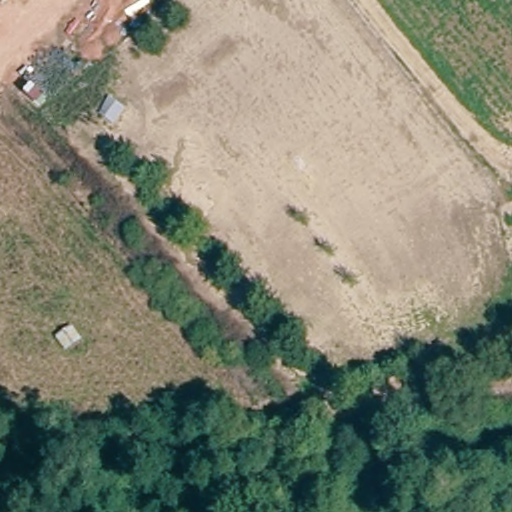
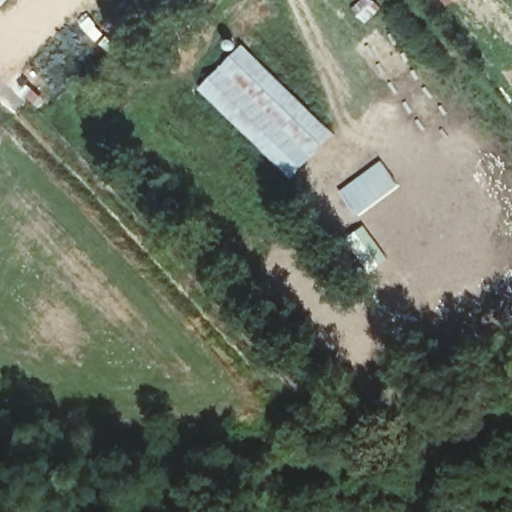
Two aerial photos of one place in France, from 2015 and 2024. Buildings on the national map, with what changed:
new [(358,0),(375,0),(383,7),(364,24),(349,8),(358,0)]
new [(243,43),(335,133),(292,178),(198,87),(243,43)]
new [(380,159),(399,184),(358,215),(338,189),(380,159)]
new [(363,225),(387,257),(371,268),(348,236),(363,225)]

